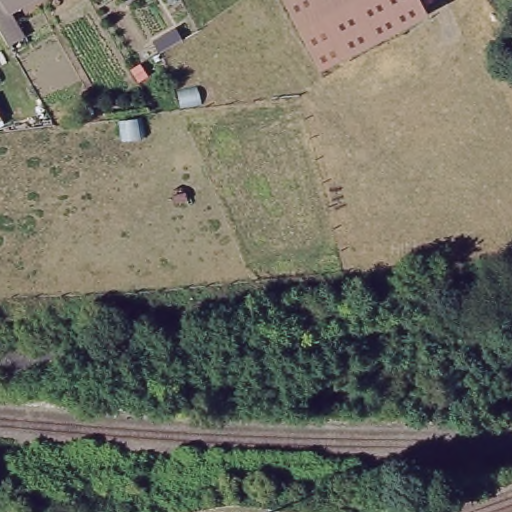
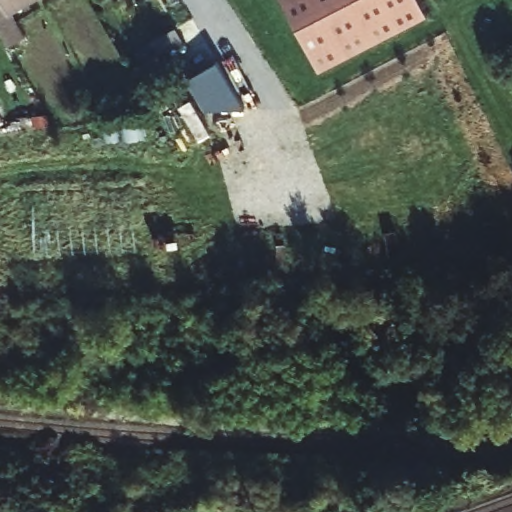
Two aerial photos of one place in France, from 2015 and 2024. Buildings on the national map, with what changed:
unchanged [(0,31),(0,0),(28,0),(9,11),(24,37),(9,46),(0,31)]
unchanged [(425,10),(337,55),(315,65),(281,0),(420,0),(425,10)]
new [(174,30),(180,40),(158,53),(152,42),(174,30)]
new [(216,67),(243,112),(204,115),(185,84),(216,67)]

